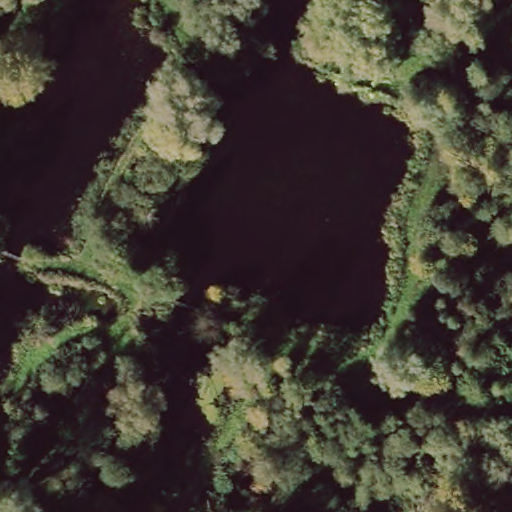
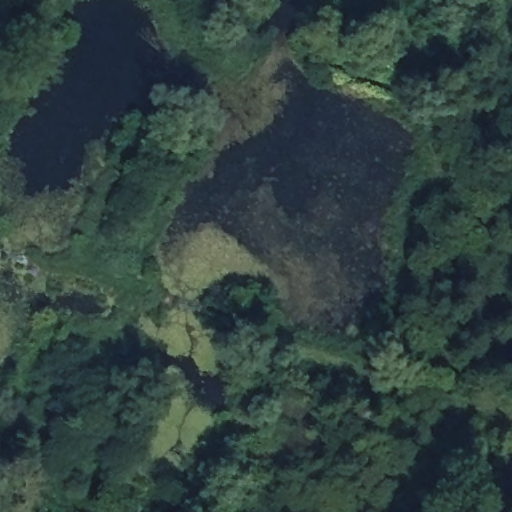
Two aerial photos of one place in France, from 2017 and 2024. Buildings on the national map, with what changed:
unchanged [(512,348),(512,368),(504,365),(512,348)]

